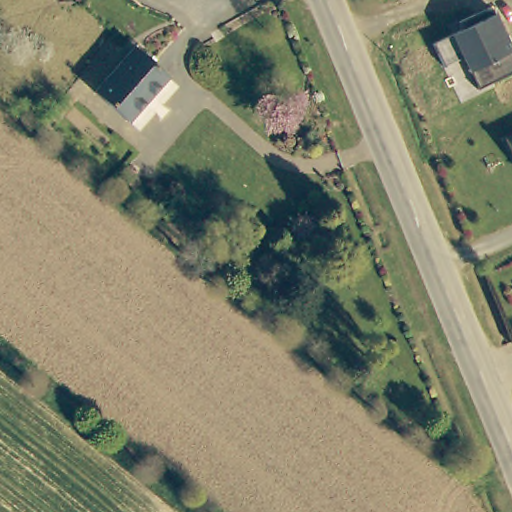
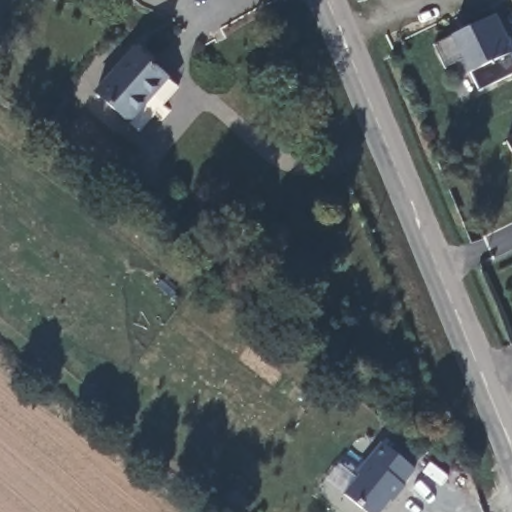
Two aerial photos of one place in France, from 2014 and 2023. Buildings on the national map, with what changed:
unchanged [(450,69),(438,47),(468,30),(464,24),(493,8),(512,43),(512,76),(486,91),(468,59),(450,69)]
unchanged [(124,121),(94,95),(131,51),(161,77),(124,121)]
unchanged [(509,146),(512,145),(512,152),(509,146)]
new [(402,484),(405,486),(393,502),(389,499),(379,512),(368,512),(345,494),(382,444),(414,469),(402,484)]

